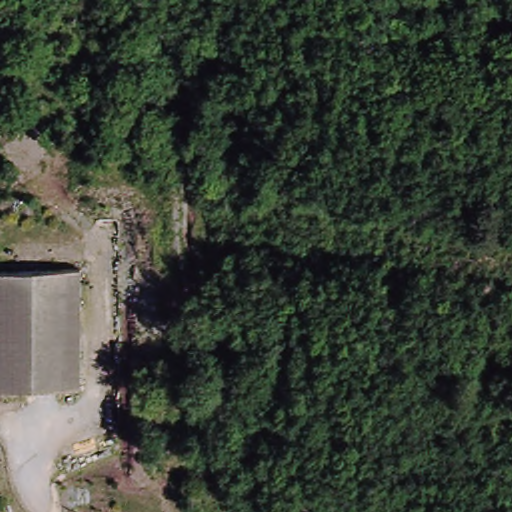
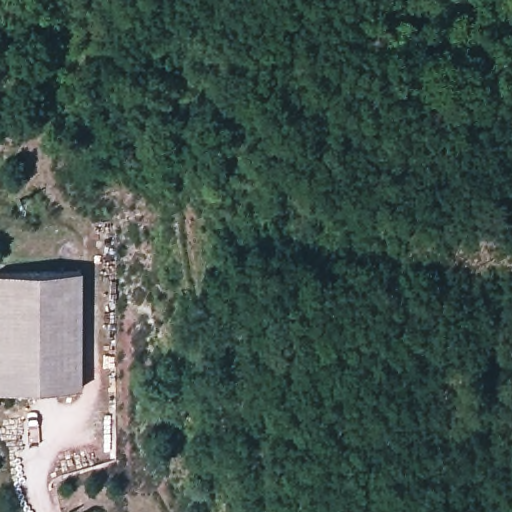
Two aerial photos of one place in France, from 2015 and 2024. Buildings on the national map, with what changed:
unchanged [(63,389),(0,389),(0,271),(70,272),(63,389)]
unchanged [(77,390),(63,389),(70,272),(84,273),(77,390)]

